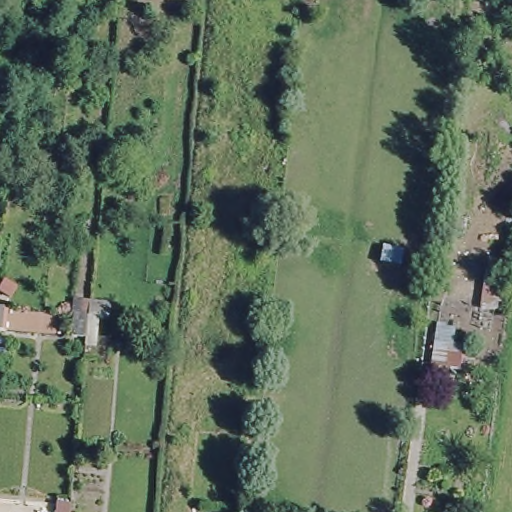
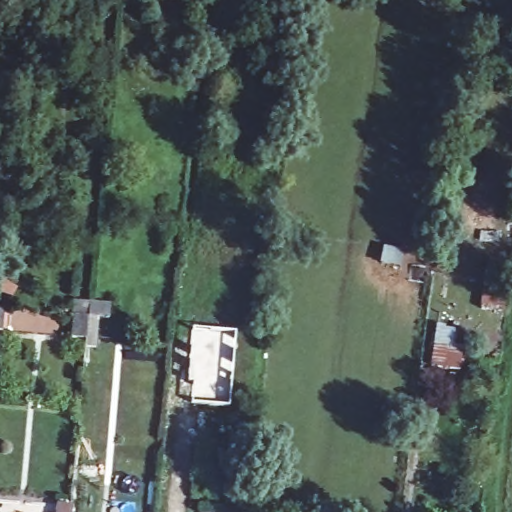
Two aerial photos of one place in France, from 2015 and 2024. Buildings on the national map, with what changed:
unchanged [(108,317),(88,314),(89,302),(109,303),(108,317)]
unchanged [(4,331),(0,331),(0,309),(6,309),(4,331)]
unchanged [(85,337),(70,336),(73,313),(88,314),(88,316),(85,337)]
unchanged [(434,325),(467,329),(463,370),(429,367),(434,325)]
new [(230,406),(191,403),(193,384),(186,383),(192,328),(236,332),(230,406)]
unchanged [(70,497),(69,512),(54,512),(55,496),(70,497)]

